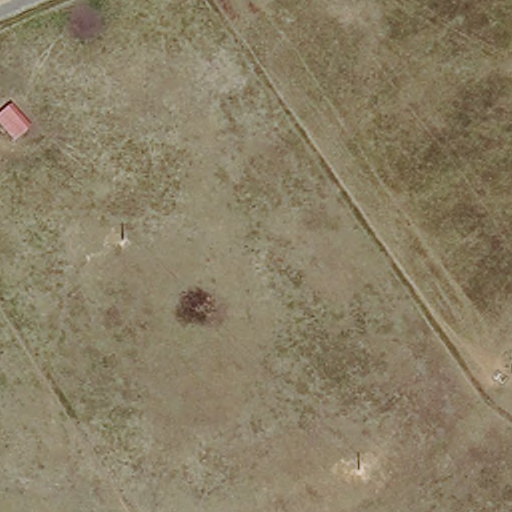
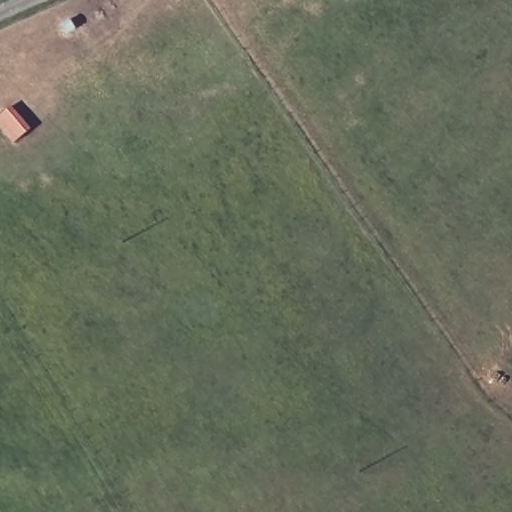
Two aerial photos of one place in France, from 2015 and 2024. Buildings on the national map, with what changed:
unchanged [(0,115),(10,107),(29,131),(17,140),(0,118),(0,115)]

